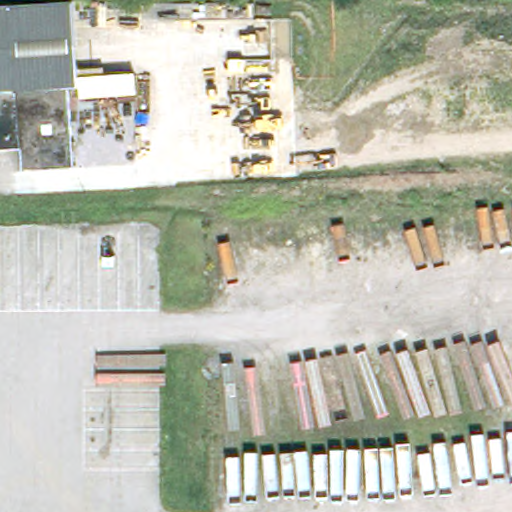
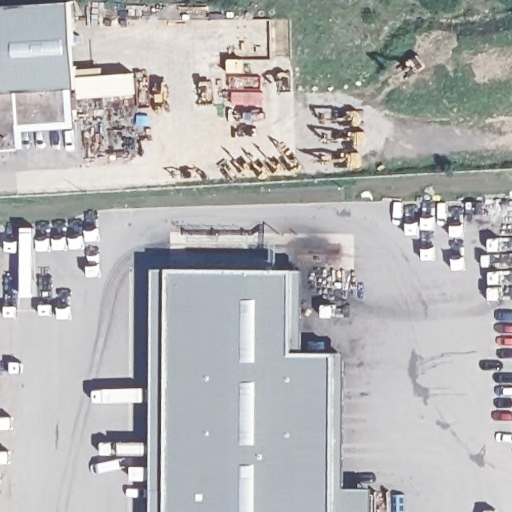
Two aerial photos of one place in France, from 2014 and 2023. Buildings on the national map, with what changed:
unchanged [(22,0),(73,0),(79,74),(134,70),(135,90),(119,91),(79,94),(78,84),(74,84),(67,85),(15,87),(19,141),(0,142),(0,2),(22,0)]
unchanged [(20,169),(19,141),(15,87),(67,85),(70,139),(74,139),(74,147),(70,147),(72,166),(20,169)]
new [(157,268),(306,268),(305,351),(350,351),(347,488),(376,488),(375,512),(155,512),(157,268)]

